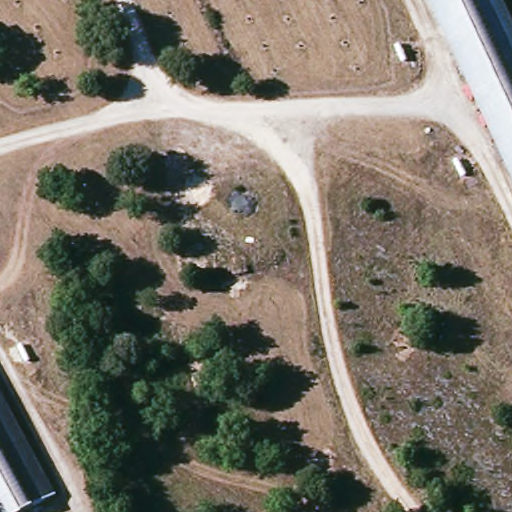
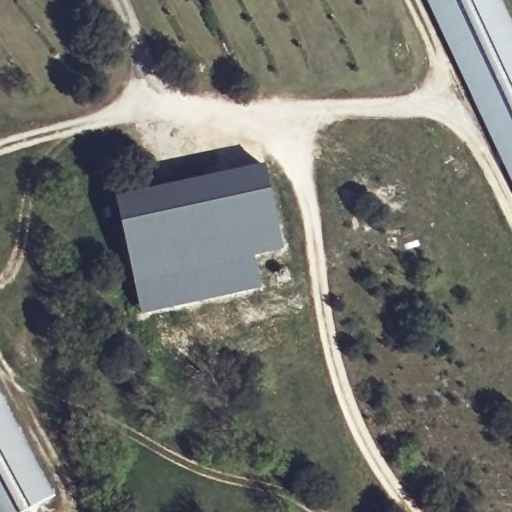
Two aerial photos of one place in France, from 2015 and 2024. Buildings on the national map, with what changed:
unchanged [(421,0),(499,0),(512,28),(512,194),(421,0)]
new [(265,165),(285,247),(135,283),(113,197),(265,165)]
unchanged [(17,512),(0,512),(0,401),(50,497),(17,512)]

